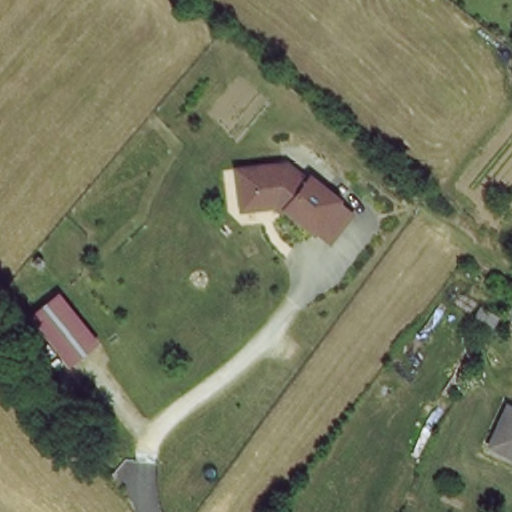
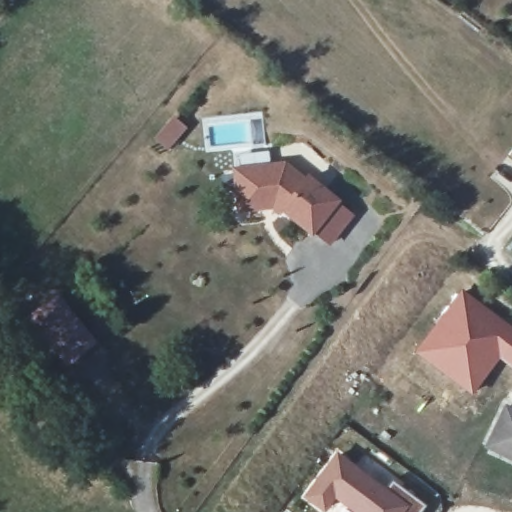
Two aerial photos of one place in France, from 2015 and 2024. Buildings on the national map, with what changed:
unchanged [(339,245),(324,232),(323,234),(290,206),(252,210),(250,197),(250,193),(247,170),(274,167),(295,165),(316,182),(318,179),(347,203),(345,204),(361,217),(339,245)]
new [(462,288),(512,325),(512,366),(500,359),(472,395),(413,350),(462,288)]
unchanged [(60,291),(102,342),(68,368),(28,317),(60,291)]
unchanged [(490,444),(507,405),(512,408),(512,455),(490,444)]
new [(388,487),(393,480),(425,504),(419,512),(350,512),(337,501),(328,512),(320,512),(301,497),(336,450),(388,487)]

